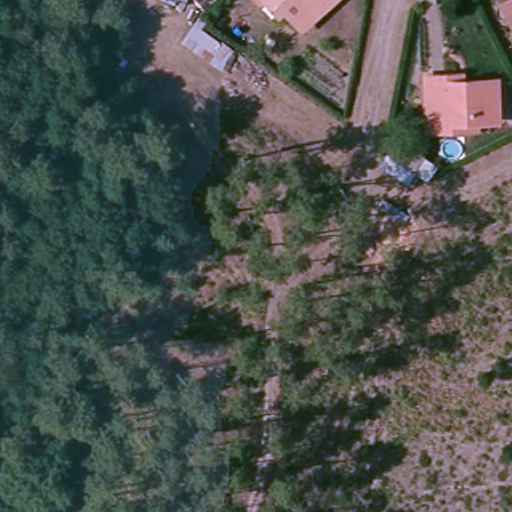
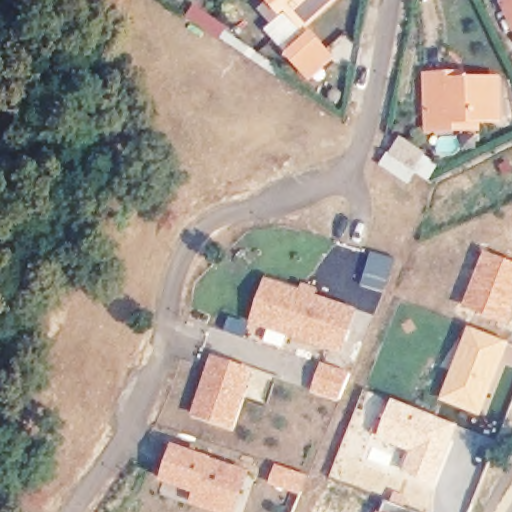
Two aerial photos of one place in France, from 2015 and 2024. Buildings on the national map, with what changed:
unchanged [(308,31),(287,8),(282,13),(270,0),(340,0),(308,31)]
unchanged [(506,7),(512,4),(512,19),(506,7)]
new [(337,58),(311,83),(284,57),(289,54),(266,28),(282,13),(287,8),(308,31),(337,58)]
unchanged [(442,130),(428,130),(427,80),(461,78),(461,84),(499,83),(501,121),(473,122),(473,128),(442,130)]
new [(442,165),(430,183),(418,173),(409,186),(380,167),(403,138),(442,165)]
new [(370,252),(395,259),(384,294),(359,286),(370,252)]
new [(484,252),(512,263),(512,310),(506,325),(462,307),(484,252)]
new [(300,290),(303,283),(318,288),(315,294),(357,310),(343,356),(249,325),(264,279),(300,290)]
new [(511,343),(482,417),(441,401),(469,327),(511,343)]
new [(254,372),(236,431),(193,419),(212,356),(254,372)]
new [(312,393),(322,364),(351,374),(340,403),(312,393)]
new [(392,399),(457,426),(434,486),(401,472),(408,454),(374,440),(392,399)]
new [(250,471),(237,512),(211,512),(189,506),(193,494),(161,484),(174,445),(214,459),(250,471)]
new [(275,464),(309,476),(300,497),(267,484),(275,464)]

